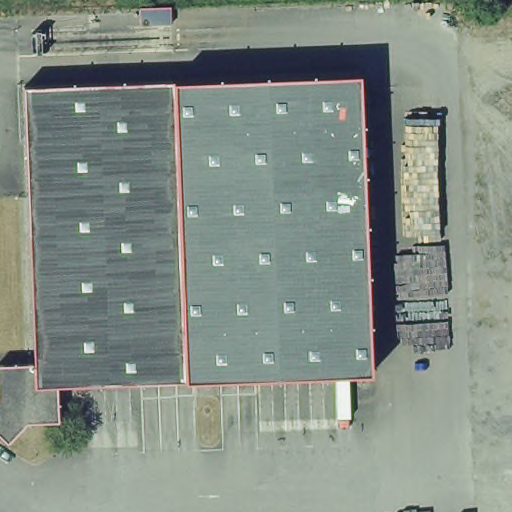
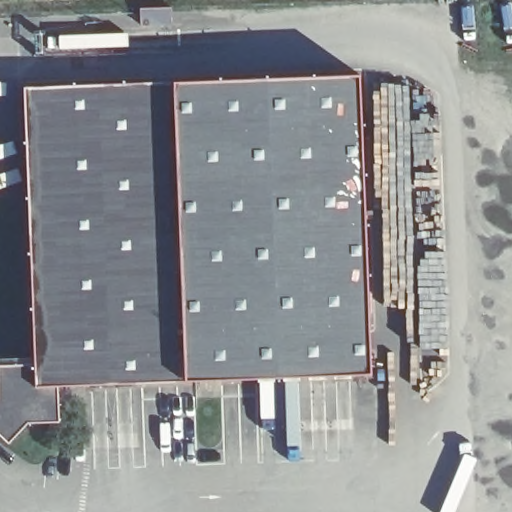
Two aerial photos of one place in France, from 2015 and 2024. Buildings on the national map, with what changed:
unchanged [(172,26),(141,27),(140,8),(171,6),(172,26)]
unchanged [(170,86),(250,83),(356,79),(366,372),(367,380),(181,386),(170,86)]
unchanged [(53,391),(55,426),(23,426),(4,448),(0,444),(0,369),(30,369),(20,91),(170,86),(181,386),(53,391)]

